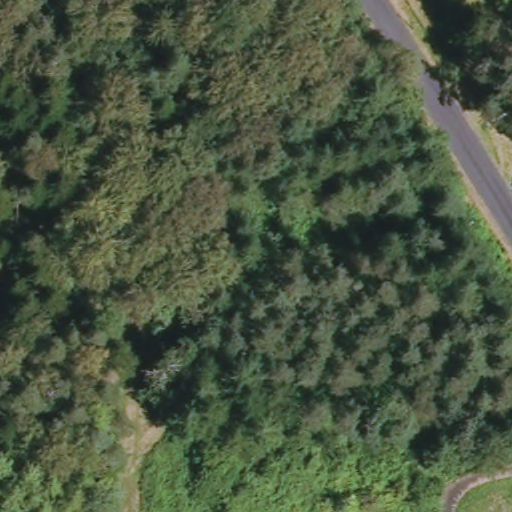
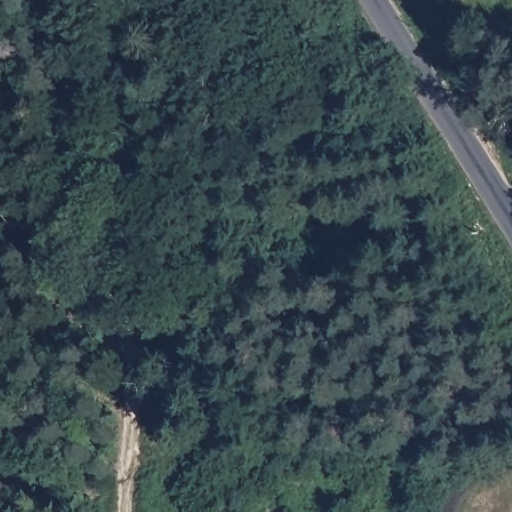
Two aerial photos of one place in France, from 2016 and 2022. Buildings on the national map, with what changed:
[]

